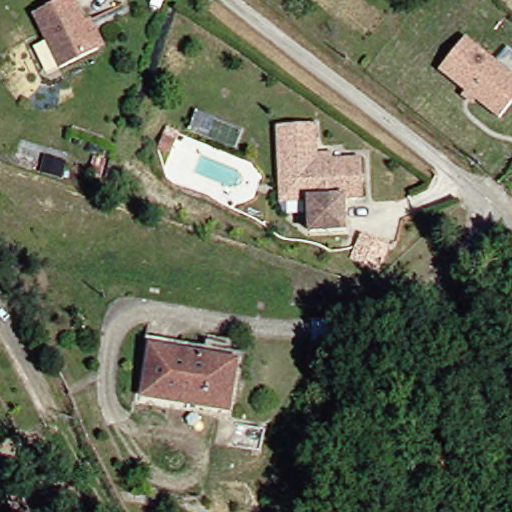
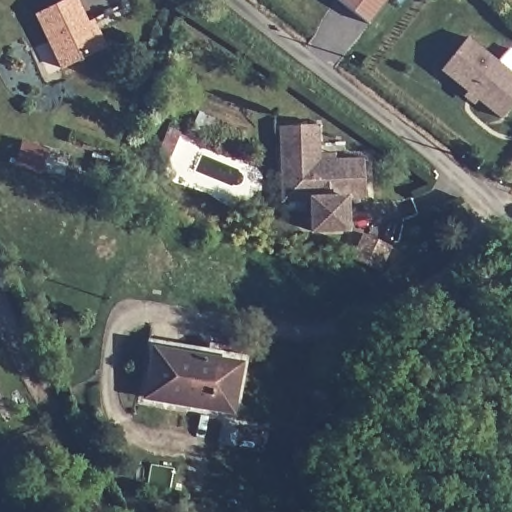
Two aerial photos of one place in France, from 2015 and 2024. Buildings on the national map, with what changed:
unchanged [(104,51),(66,66),(43,11),(67,0),(83,0),(92,22),(98,20),(109,48),(104,51)]
new [(338,0),(385,0),(368,23),(338,0)]
unchanged [(469,39),(473,35),(493,55),(512,75),(512,103),(496,119),(443,63),(469,39)]
demolished [(184,123),(195,129),(189,141),(178,136),(184,123)]
unchanged [(281,179),(284,124),(320,126),(319,156),(339,158),(338,164),(364,165),(362,201),(346,200),(344,233),(309,231),(310,198),(281,196),(281,179)]
unchanged [(167,133),(179,139),(173,151),(161,145),(167,133)]
unchanged [(151,341),(248,359),(236,424),(223,422),(232,374),(148,359),(151,341)]
unchanged [(232,374),(223,422),(140,407),(148,359),(232,374)]
unchanged [(0,402),(0,382),(9,395),(0,402)]

